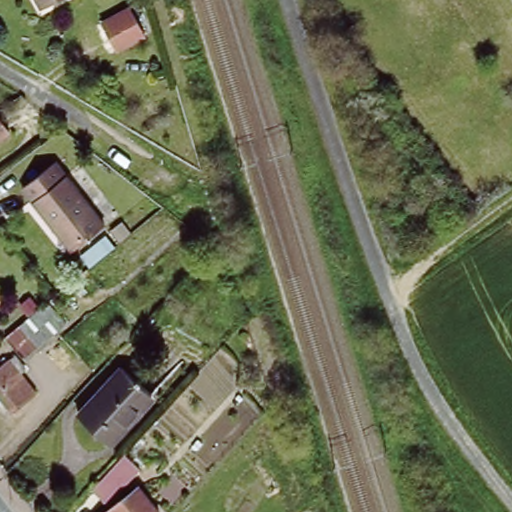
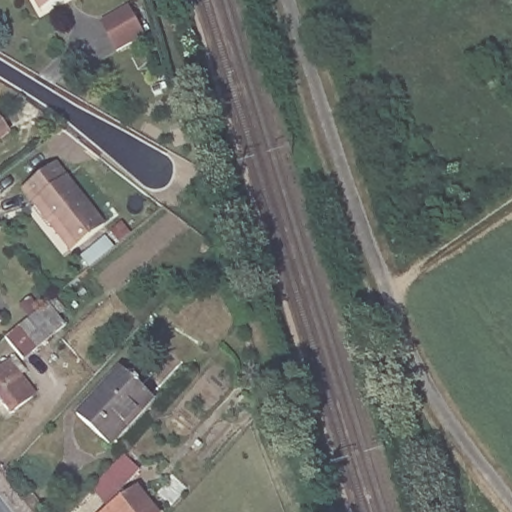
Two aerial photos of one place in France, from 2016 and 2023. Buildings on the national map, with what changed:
unchanged [(34,0),(48,0),(37,6),(34,0)]
unchanged [(15,129),(0,140),(0,113),(2,111),(15,129)]
unchanged [(103,227),(70,253),(22,191),(55,165),(103,227)]
unchanged [(47,303),(64,324),(22,359),(4,338),(47,303)]
unchanged [(19,375),(35,395),(10,415),(1,403),(0,404),(0,369),(14,358),(25,371),(19,375)]
unchanged [(121,425),(123,427),(109,442),(77,412),(122,365),(152,392),(121,425)]
unchanged [(120,460),(135,473),(104,508),(88,495),(120,460)]
unchanged [(135,499),(145,512),(114,512),(135,499)]

